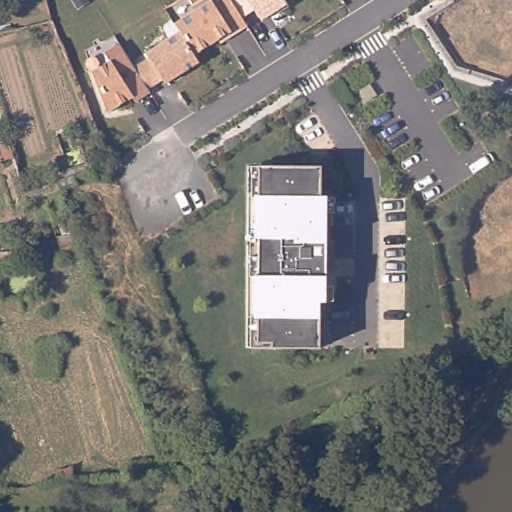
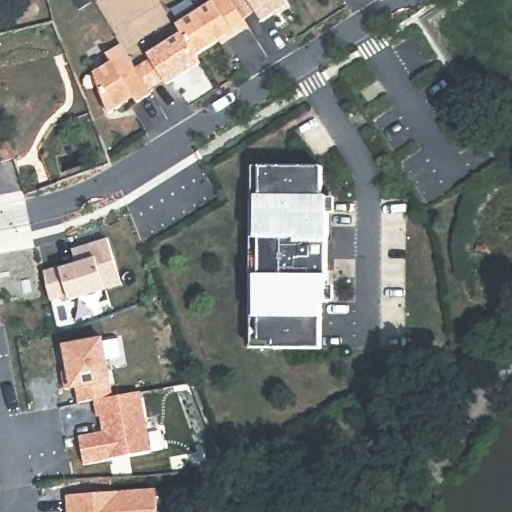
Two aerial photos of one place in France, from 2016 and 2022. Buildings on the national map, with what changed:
unchanged [(108,112),(92,72),(112,61),(105,53),(120,44),(132,64),(147,55),(145,52),(180,32),(174,22),(210,0),(283,0),(286,6),(261,21),(241,19),(246,27),(231,34),(194,55),(200,66),(165,86),(161,80),(147,88),(150,92),(137,104),(133,98),(108,112)]
unchanged [(14,162),(4,165),(0,154),(0,146),(7,144),(14,162)]
unchanged [(260,196),(260,167),(321,167),(321,197),(327,197),(326,303),(320,303),(320,318),(320,349),(273,349),(251,349),(250,321),(254,317),(255,196),(260,196)]
new [(106,237),(122,283),(106,288),(107,290),(70,299),(69,296),(51,300),(42,270),(62,264),(62,267),(75,263),(70,248),(106,237)]
demolished [(82,256),(59,262),(56,253),(80,247),(82,256)]
new [(96,416),(93,400),(77,402),(76,388),(70,389),(66,389),(64,374),(67,373),(62,343),(104,336),(111,381),(110,381),(112,396),(141,390),(151,450),(85,463),(79,435),(103,431),(100,416),(96,416)]
demolished [(188,471),(185,460),(218,451),(222,461),(188,471)]
demolished [(134,481),(131,467),(151,465),(151,479),(134,481)]
new [(67,512),(66,494),(156,488),(158,512),(67,512)]

